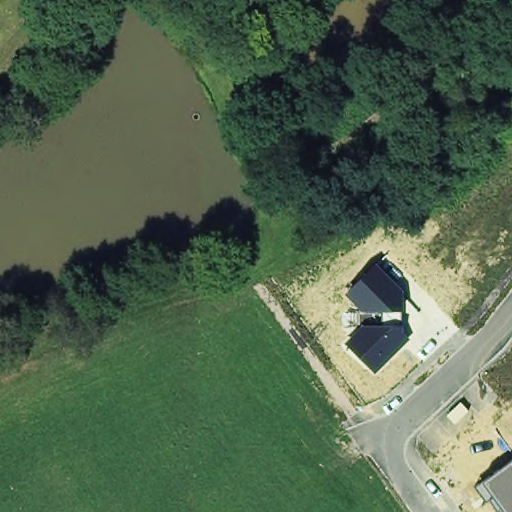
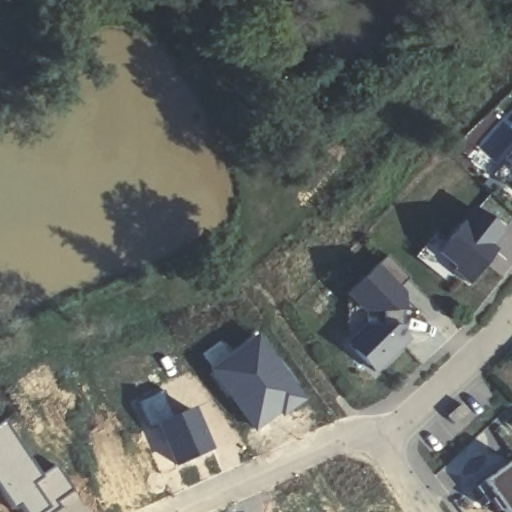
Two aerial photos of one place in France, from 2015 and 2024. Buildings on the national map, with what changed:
new [(507,164),(512,158),(512,168),(507,164)]
new [(450,240),(463,222),(465,224),(477,208),(505,230),(493,246),(499,250),(498,251),(496,250),(471,282),(456,270),(449,280),(418,255),(438,230),(450,240)]
unchanged [(346,344),(365,325),(382,325),(383,312),(364,312),(345,295),(377,266),(407,300),(400,311),(400,329),(410,340),(375,373),(346,344)]
new [(220,339),(228,350),(256,330),(308,399),(282,418),(280,415),(255,432),(205,369),(207,367),(198,355),(220,339)]
new [(190,408),(210,449),(172,465),(154,425),(190,408)]
new [(38,475),(54,465),(70,489),(55,500),(58,506),(50,512),(22,512),(17,505),(11,509),(0,493),(0,422),(2,420),(38,475)]
unchanged [(501,507),(496,510),(490,501),(485,505),(476,489),(486,481),(510,461),(512,464),(512,512),(504,512),(501,507)]

